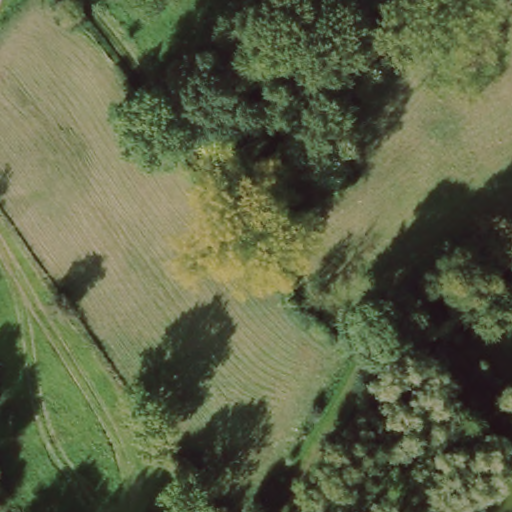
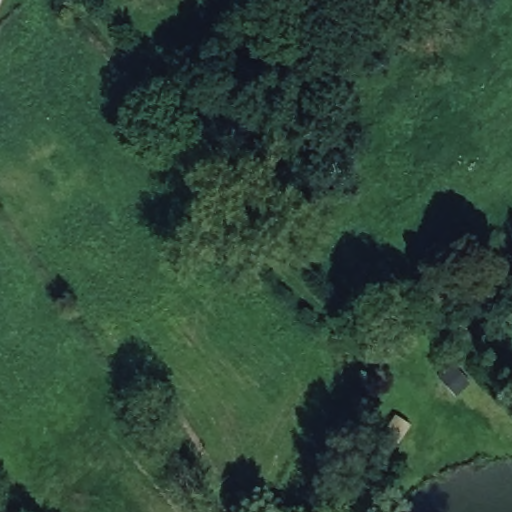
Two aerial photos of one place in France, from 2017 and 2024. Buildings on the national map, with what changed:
unchanged [(460,362),(475,378),(462,390),(447,374),(460,362)]

